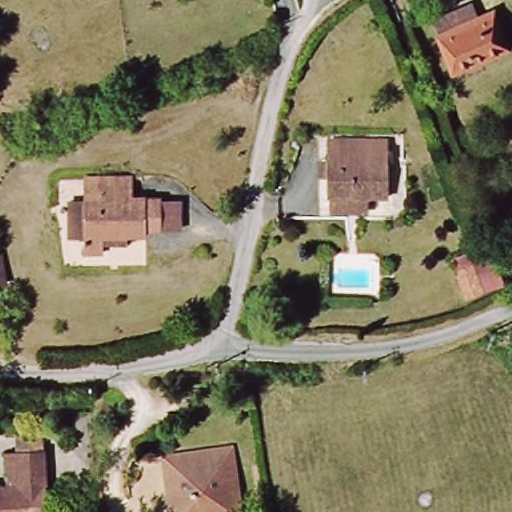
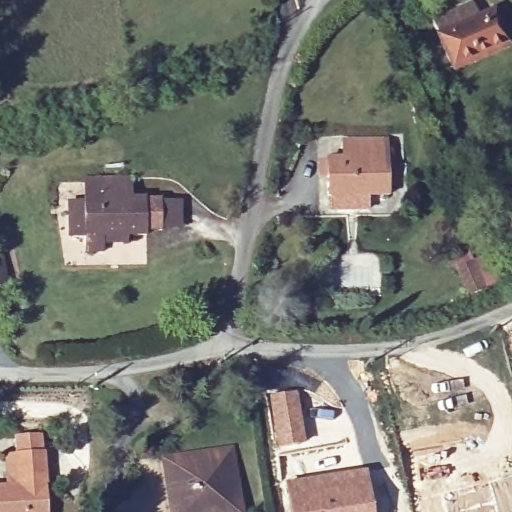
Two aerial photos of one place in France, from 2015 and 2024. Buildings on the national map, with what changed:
unchanged [(510,52),(452,76),(435,40),(439,38),(432,24),(459,13),(472,7),(477,20),(494,15),(510,52)]
unchanged [(389,198),(371,199),(372,217),(329,215),(329,164),(328,140),(345,140),(389,140),(389,198)]
unchanged [(163,237),(147,237),(145,244),(124,244),(124,252),(103,252),(104,261),(85,261),(85,245),(65,246),(63,206),(80,205),(81,200),(80,181),(93,181),(128,180),(130,205),(145,204),(145,208),(163,207),(180,208),(180,237),(163,237)]
unchanged [(510,287),(506,292),(503,295),(495,288),(465,300),(454,272),(491,256),(502,280),(507,281),(510,287)]
unchanged [(12,305),(0,281),(0,274),(8,270),(24,300),(12,305)]
new [(297,390),(305,443),(275,447),(267,394),(297,390)]
unchanged [(19,489),(17,461),(14,436),(42,436),(42,459),(45,512),(0,512),(0,490),(19,489)]
unchanged [(165,463),(227,452),(237,512),(172,512),(165,463)]
new [(366,467),(373,512),(288,512),(284,480),(366,467)]

